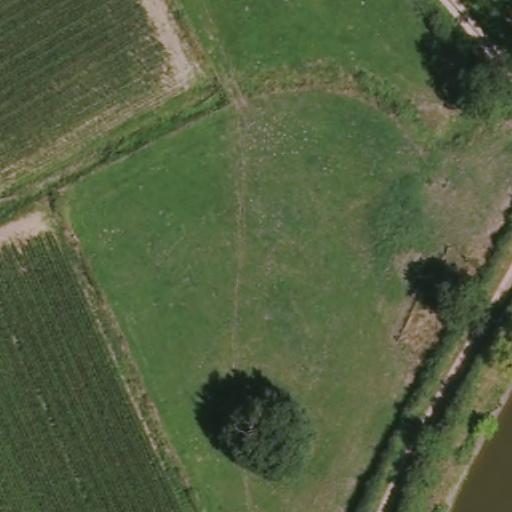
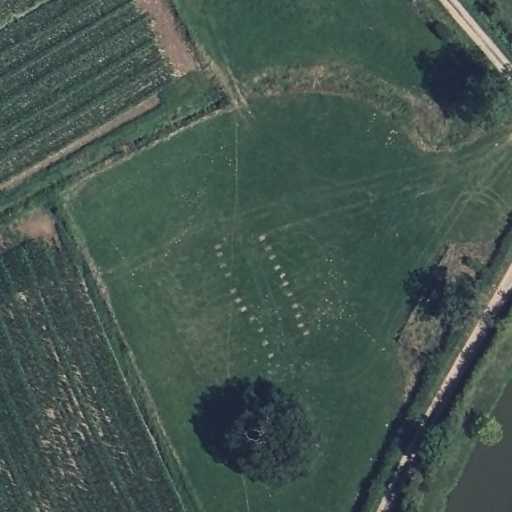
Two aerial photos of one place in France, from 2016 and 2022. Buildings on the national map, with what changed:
[]

